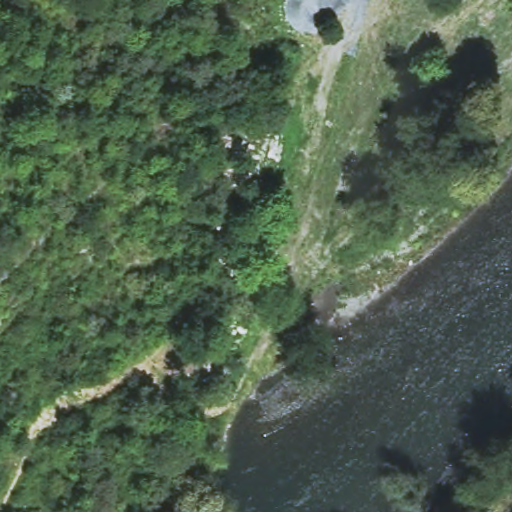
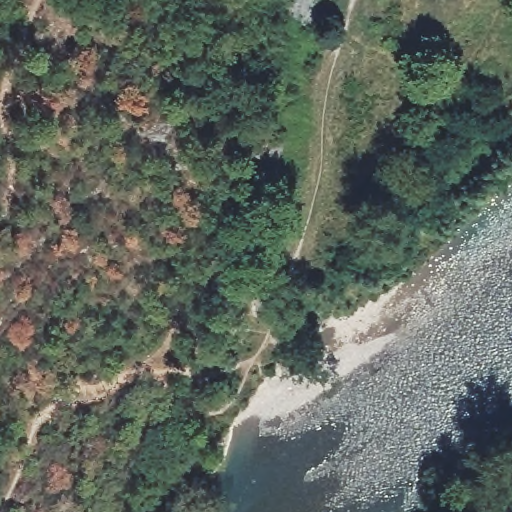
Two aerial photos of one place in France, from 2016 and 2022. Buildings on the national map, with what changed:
unchanged [(266,281),(262,300),(251,298),(255,280),(266,281)]

